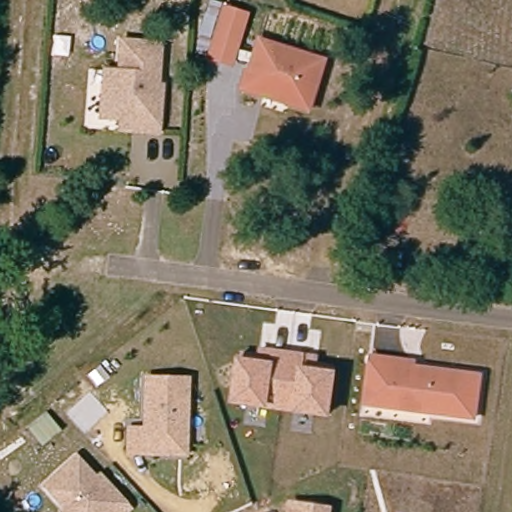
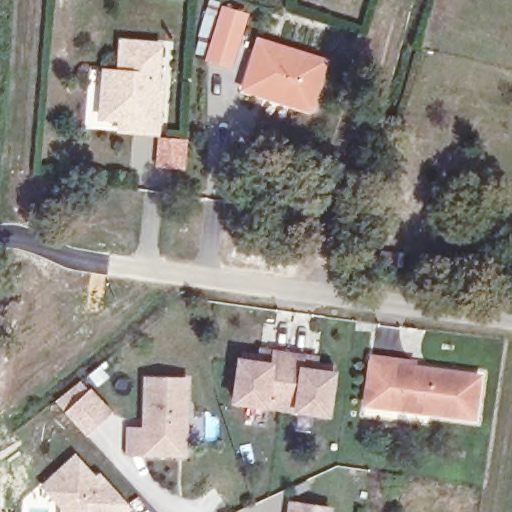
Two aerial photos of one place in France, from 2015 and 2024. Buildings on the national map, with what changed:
unchanged [(225,13),(246,19),(232,69),(210,63),(225,13)]
unchanged [(245,89),(260,39),(328,59),(313,109),(292,102),(267,95),(245,89)]
unchanged [(97,118),(99,97),(101,71),(108,72),(115,72),(118,42),(156,44),(154,78),(153,86),(158,87),(154,134),(130,132),(116,131),(117,120),(97,118)]
unchanged [(327,419),(230,406),(238,351),(258,355),(259,346),(318,355),(317,363),(335,366),(327,419)]
unchanged [(364,392),(369,361),(392,364),(411,367),(411,371),(477,380),(471,422),(384,410),(362,407),(364,392)]
new [(114,413),(86,437),(54,402),(80,378),(114,413)]
unchanged [(146,455),(129,455),(130,430),(146,430),(149,380),(190,382),(187,442),(187,457),(146,455)]
unchanged [(60,508),(40,487),(71,459),(91,481),(96,477),(125,511),(123,512),(59,512),(60,508)]
unchanged [(293,501),(331,507),(330,512),(291,512),(293,501)]

